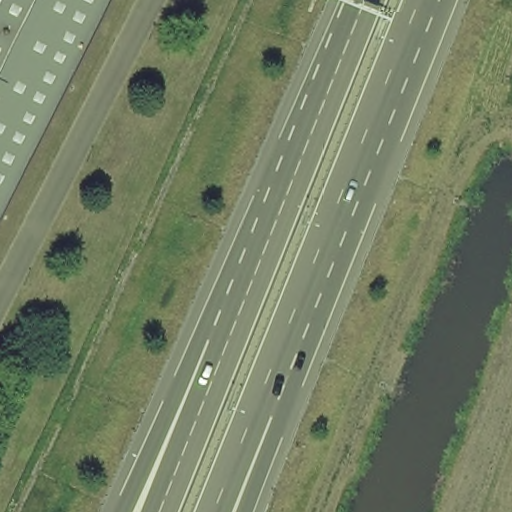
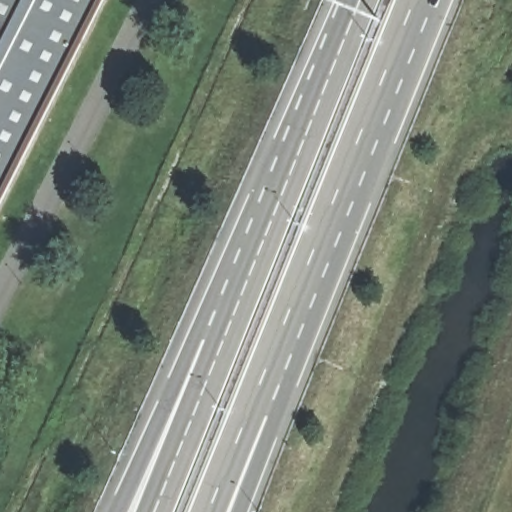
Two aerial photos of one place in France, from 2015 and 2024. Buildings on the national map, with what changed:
unchanged [(0,202),(0,0),(103,0),(0,202)]

